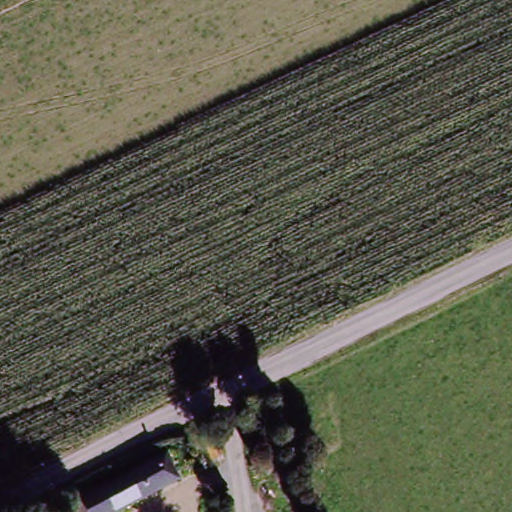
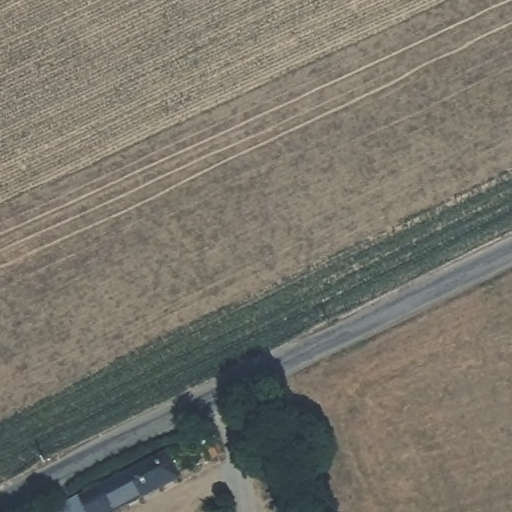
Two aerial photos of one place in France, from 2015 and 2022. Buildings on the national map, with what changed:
unchanged [(222,456),(209,463),(202,451),(215,443),(222,456)]
unchanged [(163,466),(177,487),(129,512),(70,512),(163,466)]
unchanged [(302,512),(257,512),(249,479),(283,468),(302,512)]

